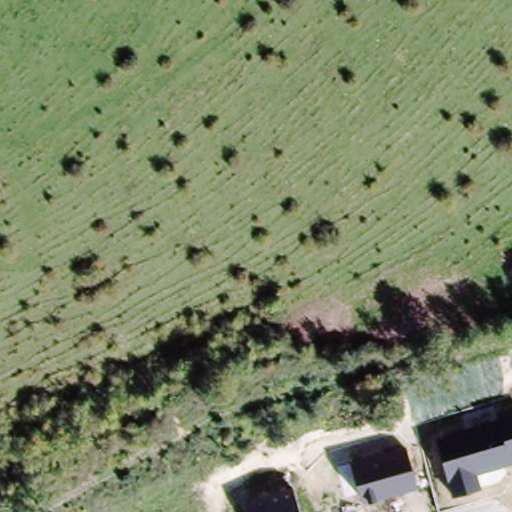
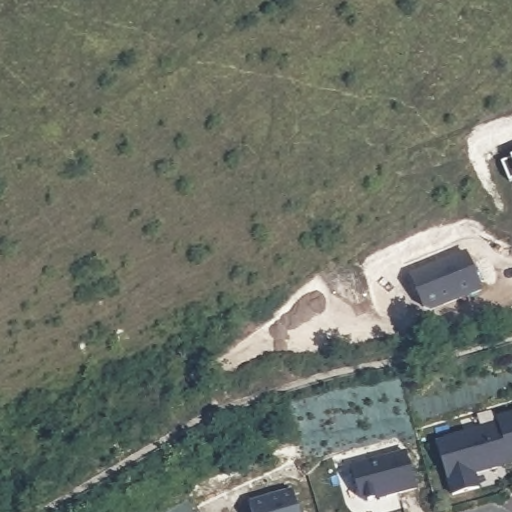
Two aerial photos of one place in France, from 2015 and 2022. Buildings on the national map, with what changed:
new [(512,154),(512,177),(508,178),(501,159),(512,154)]
new [(465,251),(481,291),(430,310),(424,307),(410,272),(465,251)]
unchanged [(500,424),(497,414),(512,409),(512,464),(478,474),(482,488),(450,497),(437,443),(500,424)]
unchanged [(407,449),(417,489),(362,503),(352,464),(407,449)]
unchanged [(252,512),(250,504),(292,492),(298,512),(252,512)]

